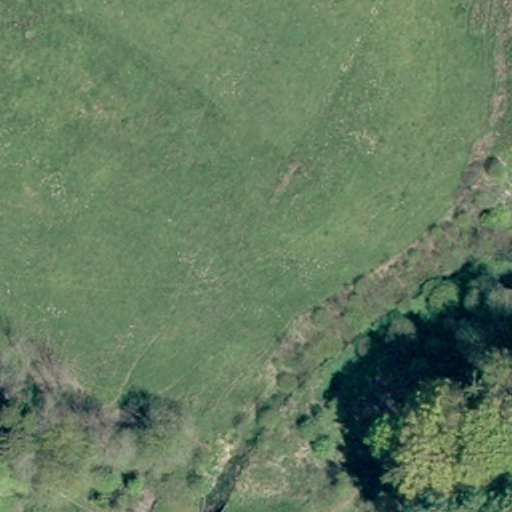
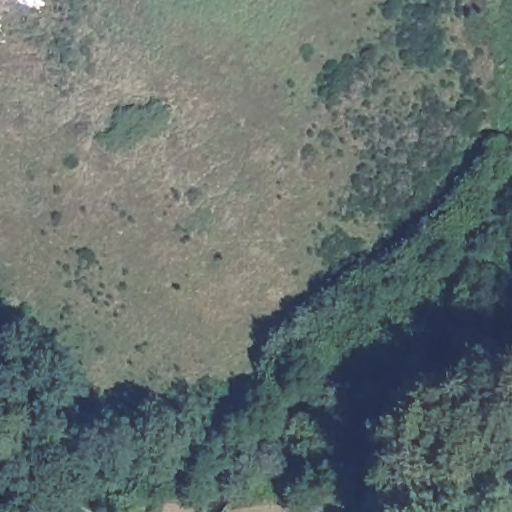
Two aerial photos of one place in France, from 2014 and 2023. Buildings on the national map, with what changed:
[]

